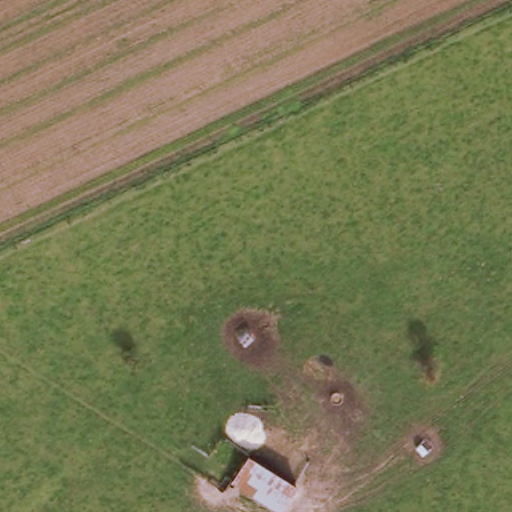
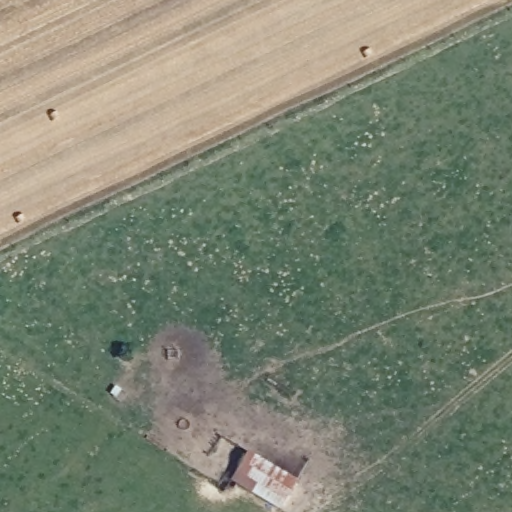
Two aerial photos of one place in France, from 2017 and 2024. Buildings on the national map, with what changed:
unchanged [(284,512),(279,512),(231,485),(252,458),(295,488),(284,512)]

